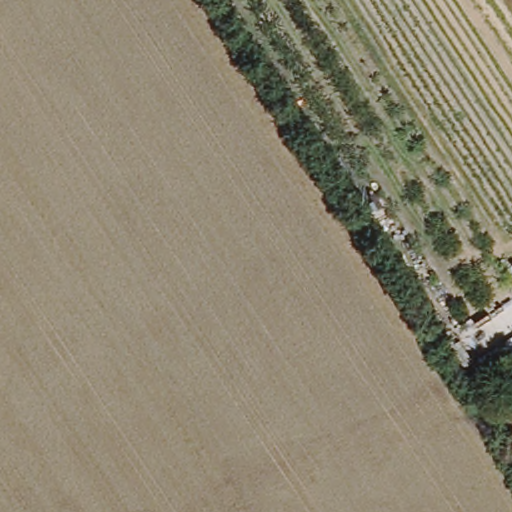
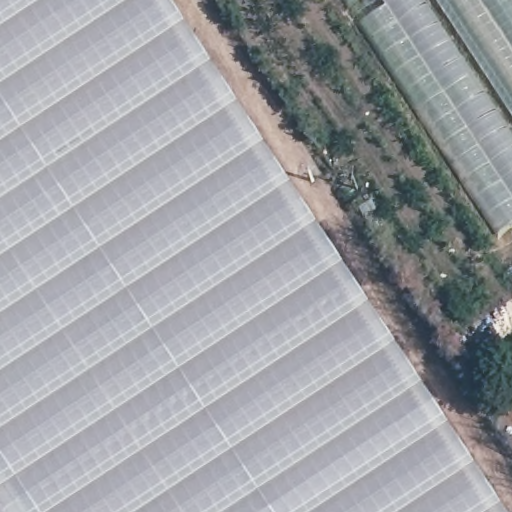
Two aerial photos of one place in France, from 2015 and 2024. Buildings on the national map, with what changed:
new [(0,0),(169,0),(506,512),(0,512),(0,0)]
new [(500,233),(346,0),(512,0),(512,225),(500,233)]
new [(509,339),(512,336),(512,343),(509,339)]

